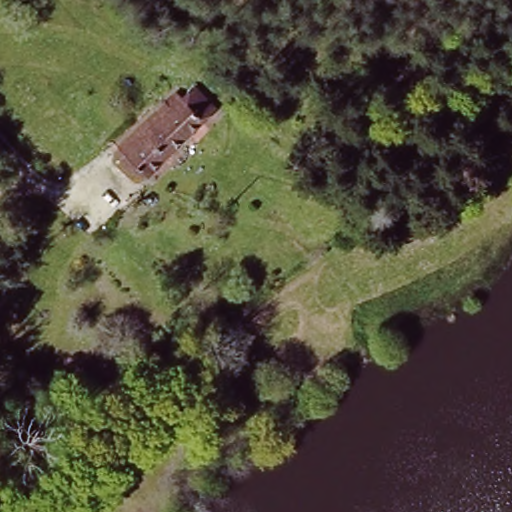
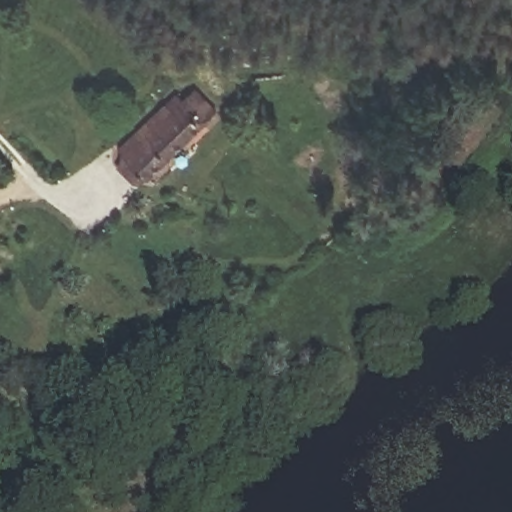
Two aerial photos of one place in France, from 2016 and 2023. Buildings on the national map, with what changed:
unchanged [(127,156),(119,148),(173,100),(181,109),(199,91),(219,115),(201,131),(149,180),(127,156)]

